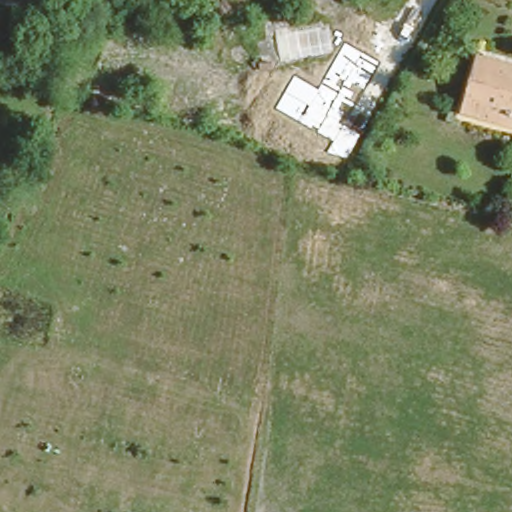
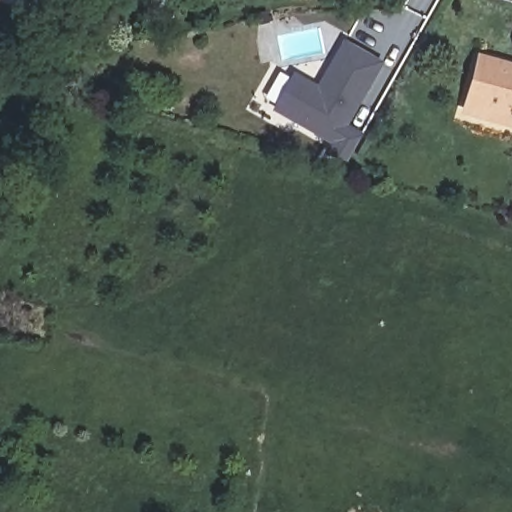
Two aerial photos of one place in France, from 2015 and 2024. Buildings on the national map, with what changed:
new [(293,72),(317,86),(343,37),(382,62),(346,124),(361,132),(346,161),(323,152),(328,143),(271,110),(293,72)]
unchanged [(465,106),(469,96),(482,52),(512,61),(512,121),(509,120),(475,109),(465,106)]

